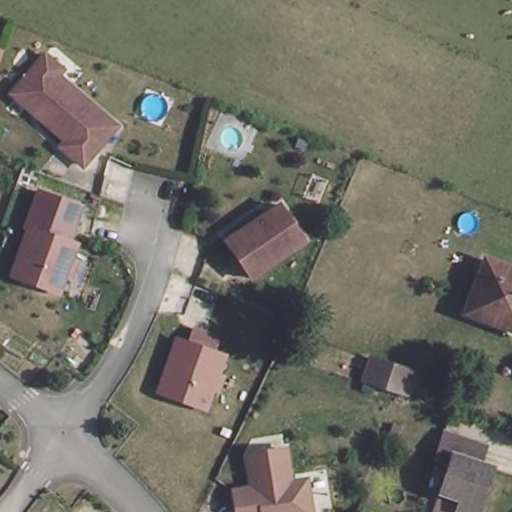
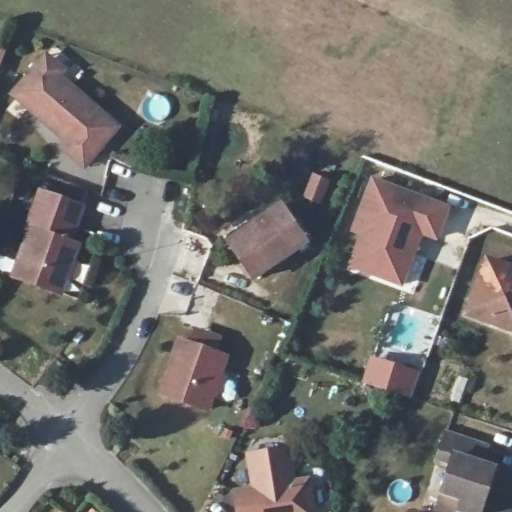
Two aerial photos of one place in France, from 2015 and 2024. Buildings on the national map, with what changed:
unchanged [(48,51),(65,67),(59,73),(116,127),(88,156),(80,164),(59,144),(64,138),(13,88),(43,57),(48,51)]
new [(358,235),(349,232),(371,175),(450,205),(437,240),(422,235),(402,287),(346,267),(358,235)]
unchanged [(254,229),(250,224),(283,201),(308,239),(255,275),(233,244),(254,229)]
unchanged [(79,247),(62,289),(16,271),(32,229),(79,247)]
unchanged [(490,258),(512,267),(512,327),(470,311),(490,258)]
unchanged [(212,406),(165,390),(183,336),(196,341),(201,327),(224,334),(219,349),(231,353),(212,406)]
unchanged [(418,370),(408,396),(363,381),(372,355),(418,370)]
unchanged [(444,482),(453,457),(442,452),(450,429),(489,442),(485,455),(499,460),(483,507),(463,501),(440,494),(444,482)]
unchanged [(250,485),(244,453),(289,448),(295,479),(310,476),(315,512),(236,512),(232,488),(250,485)]

